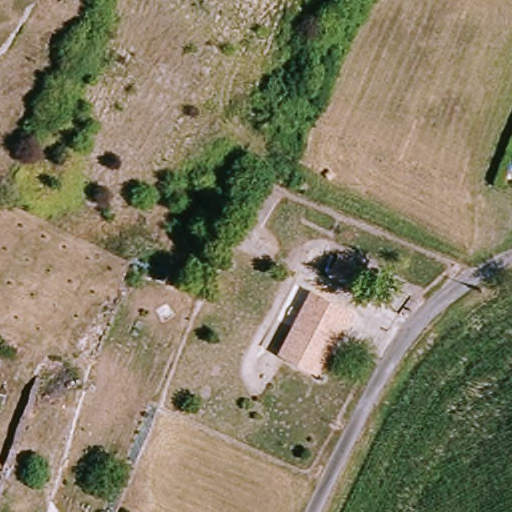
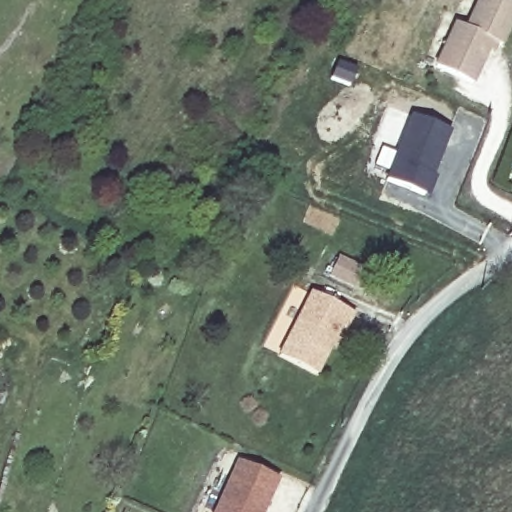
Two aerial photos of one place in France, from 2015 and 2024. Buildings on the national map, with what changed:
new [(467,27),(480,0),(511,0),(512,1),(512,20),(501,43),(493,39),(473,83),(437,66),(457,22),(467,27)]
new [(406,130),(443,145),(424,194),(386,180),(406,130)]
unchanged [(348,290),(326,277),(336,261),(358,272),(348,290)]
unchanged [(345,332),(341,330),(315,377),(278,357),(312,294),(353,317),(345,332)]
new [(217,512),(241,458),(281,476),(265,512),(217,512)]

